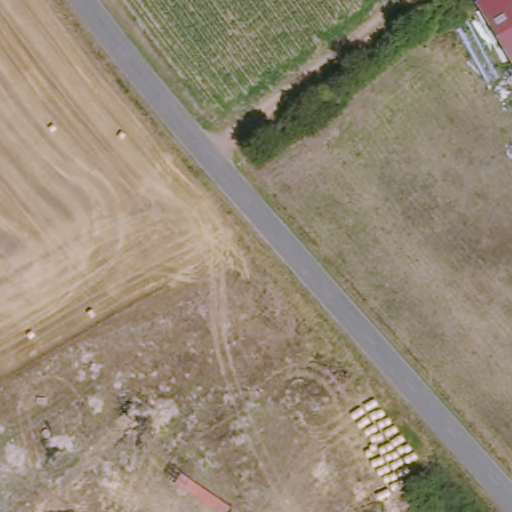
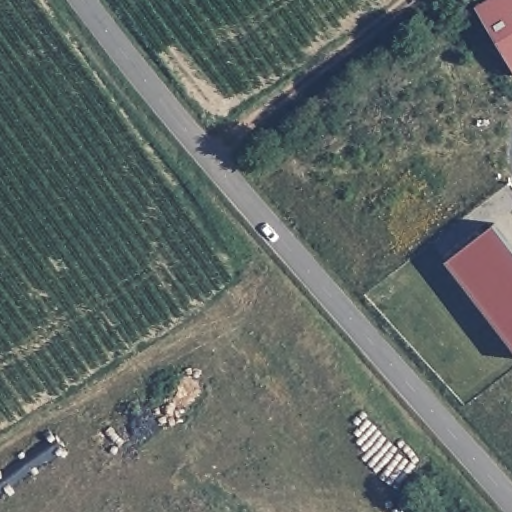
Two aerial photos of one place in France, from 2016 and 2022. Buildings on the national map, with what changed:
unchanged [(483,0),(512,0),(512,58),(478,3),(483,0)]
new [(492,224),(512,250),(512,357),(440,264),(492,224)]

